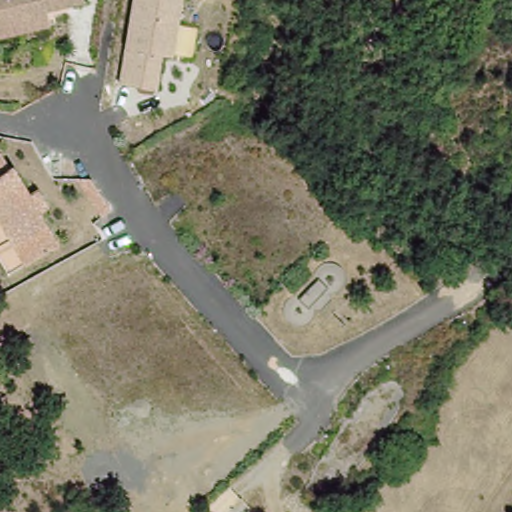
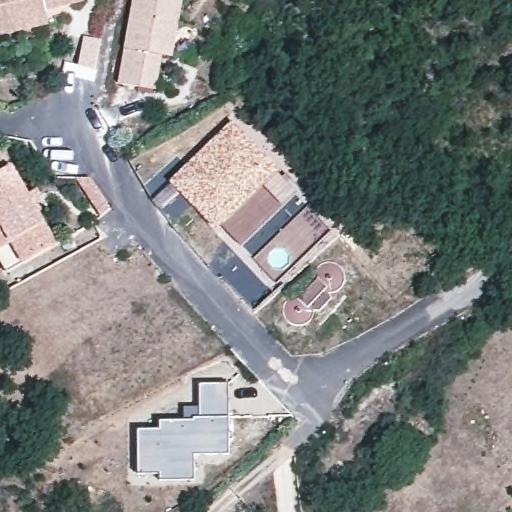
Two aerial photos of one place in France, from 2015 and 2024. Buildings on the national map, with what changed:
unchanged [(79,8),(43,15),(44,33),(0,39),(0,0),(77,0),(79,8)]
unchanged [(131,0),(179,0),(168,56),(162,56),(152,95),(116,84),(131,0)]
new [(280,172),(219,231),(169,182),(232,120),(280,172)]
unchanged [(11,172),(51,250),(20,266),(0,231),(0,161),(11,172)]
new [(159,427),(159,419),(186,418),(186,409),(199,408),(198,382),(228,382),(230,454),(196,455),(195,480),(159,481),(159,474),(138,474),(137,428),(159,427)]

